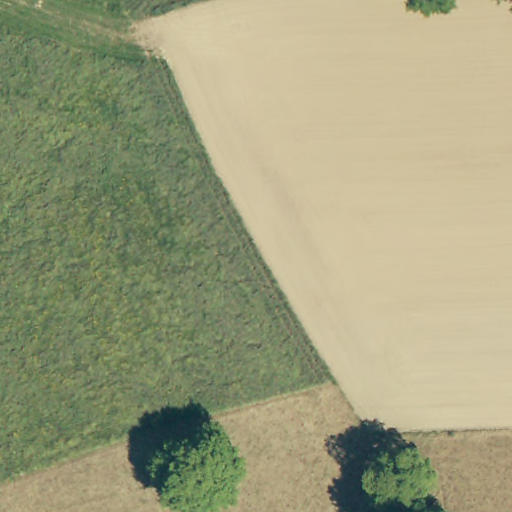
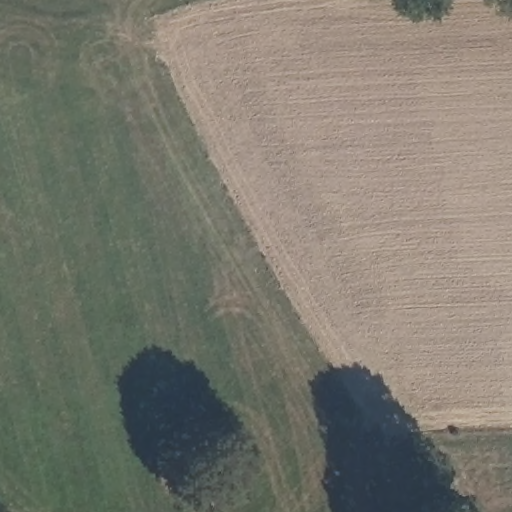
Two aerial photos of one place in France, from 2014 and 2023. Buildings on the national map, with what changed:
[]

